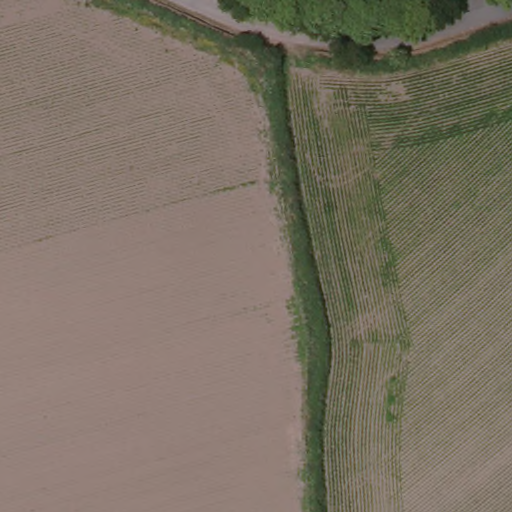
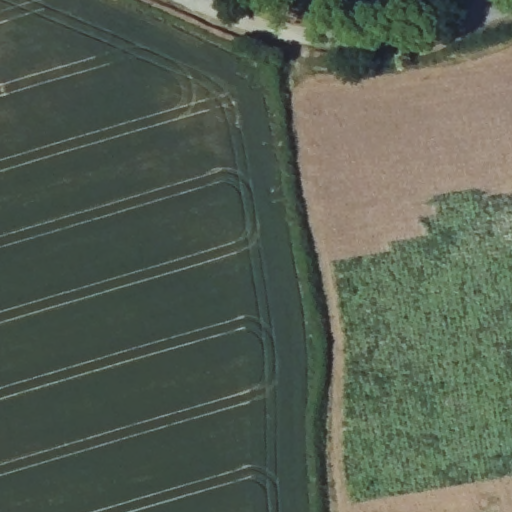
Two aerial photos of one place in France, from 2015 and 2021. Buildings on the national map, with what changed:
[]

